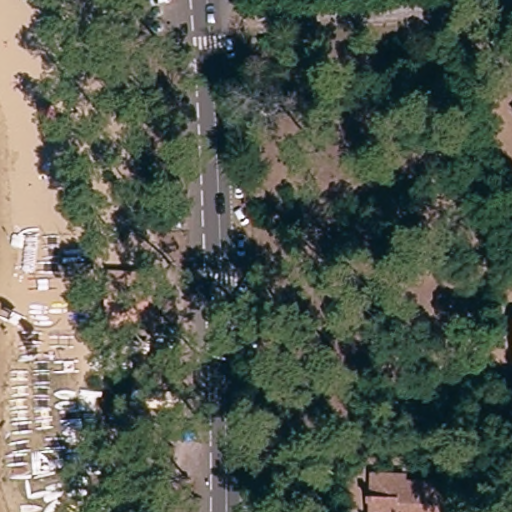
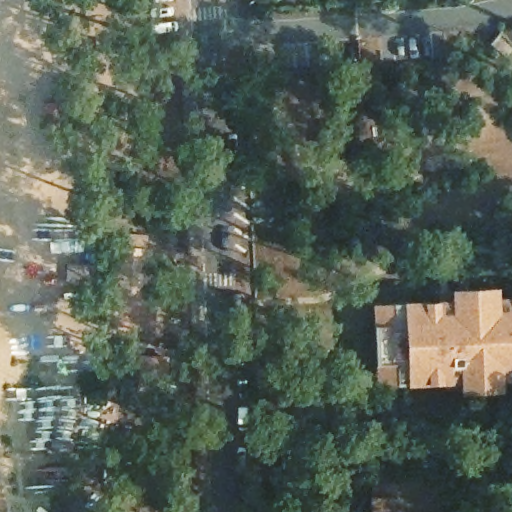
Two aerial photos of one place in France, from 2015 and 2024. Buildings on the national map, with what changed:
unchanged [(488,52),(497,40),(512,51),(512,70),(488,52)]
unchanged [(107,277),(152,276),(152,328),(107,328),(107,277)]
new [(452,298),(452,288),(500,286),(501,295),(512,295),(512,382),(503,382),(504,392),(462,395),(461,382),(408,386),(377,383),(373,303),(452,298)]
unchanged [(156,367),(155,393),(129,392),(130,365),(156,367)]
demolished [(465,385),(466,402),(435,404),(434,387),(465,385)]
unchanged [(399,474),(398,480),(433,481),(432,512),(369,512),(371,472),(399,474)]

